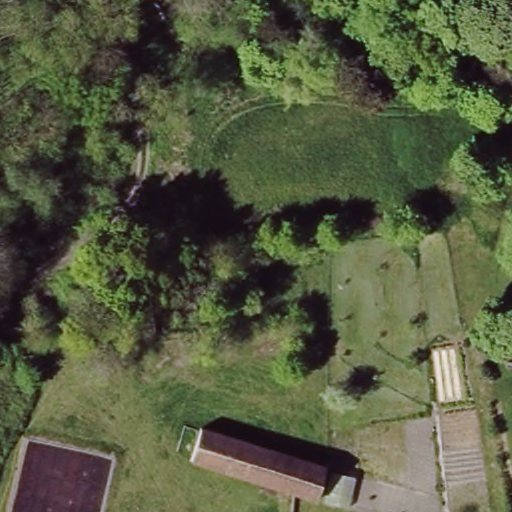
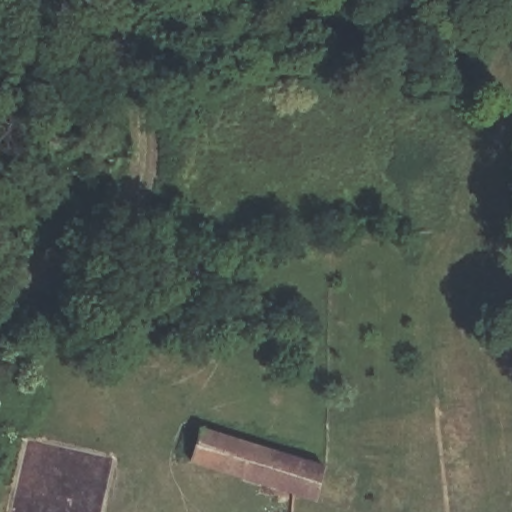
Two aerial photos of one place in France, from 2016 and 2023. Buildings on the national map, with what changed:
unchanged [(333,458),(316,510),(187,466),(201,420),(333,458)]

